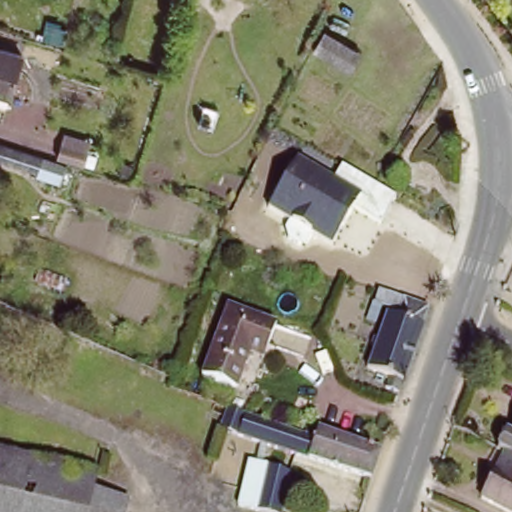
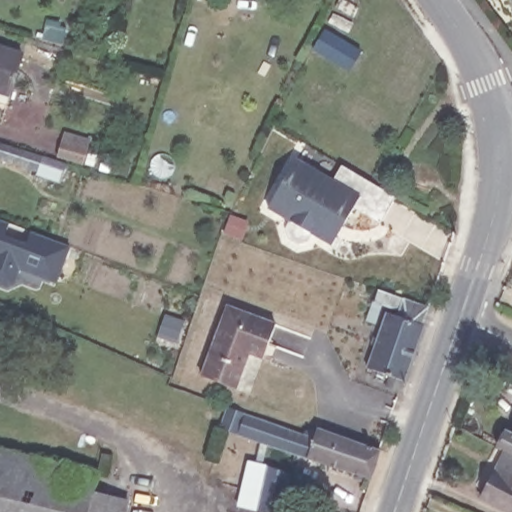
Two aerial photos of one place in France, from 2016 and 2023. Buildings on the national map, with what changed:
unchanged [(200,7),(192,5),(193,0),(202,0),(200,7)]
unchanged [(352,46),(340,65),(309,45),(321,26),(352,46)]
unchanged [(24,48),(9,97),(0,95),(0,41),(24,48)]
unchanged [(69,129),(98,137),(88,167),(60,156),(69,129)]
unchanged [(61,182),(19,169),(4,164),(0,163),(0,145),(9,147),(24,152),(66,166),(61,182)]
unchanged [(335,181),(342,168),(397,198),(382,225),(356,209),(333,247),(268,208),(298,160),(335,181)]
new [(9,223),(3,235),(26,244),(31,232),(70,247),(55,286),(19,271),(14,286),(7,288),(0,286),(0,220),(9,223)]
unchanged [(426,324),(428,325),(409,379),(406,378),(402,392),(390,387),(394,375),(373,368),(392,315),(402,318),(405,310),(379,300),(383,289),(433,306),(426,324)]
unchanged [(280,324),(268,357),(255,353),(242,390),(206,377),(231,306),(280,324)]
unchanged [(238,506),(249,462),(257,465),(262,442),(224,430),(232,407),(248,413),(254,416),(305,435),(298,456),(273,447),(267,470),(292,476),(295,476),(290,496),(286,512),(260,512),(257,511),(238,506)]
unchanged [(312,429),(320,430),(321,428),(383,450),(373,481),(298,456),(305,435),(312,429)]
unchanged [(500,448),(508,435),(512,437),(512,454),(508,452),(500,448)]
unchanged [(94,468),(89,487),(83,512),(0,512),(0,446),(33,454),(94,468)]
unchanged [(508,452),(512,454),(512,512),(507,512),(483,499),(508,452)]
unchanged [(83,512),(89,487),(125,496),(121,512),(83,512)]

